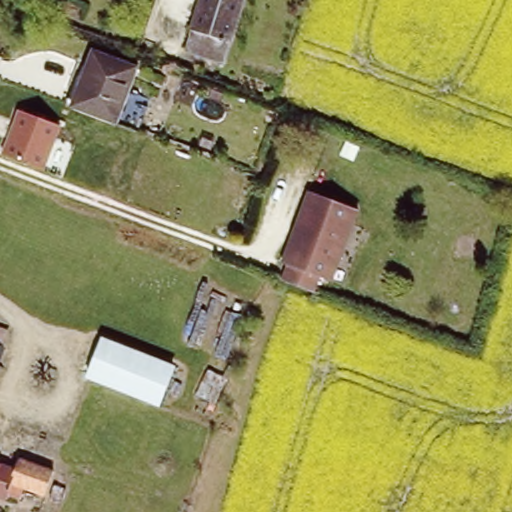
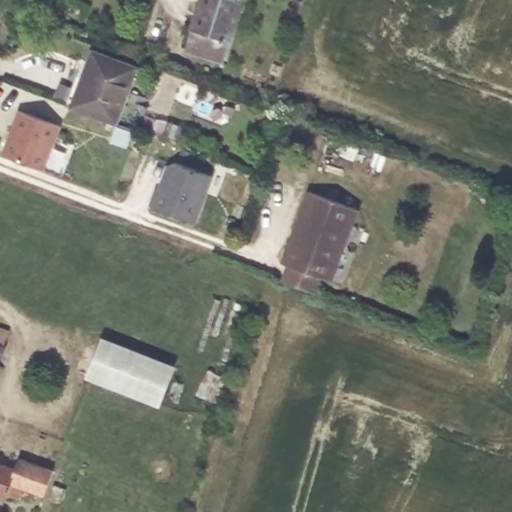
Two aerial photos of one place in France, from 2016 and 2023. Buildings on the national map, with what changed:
unchanged [(223,53),(185,42),(196,0),(249,0),(233,56),(223,53)]
unchanged [(120,118),(77,103),(88,73),(83,72),(93,42),(140,59),(127,97),(150,105),(142,126),(120,118)]
unchanged [(63,121),(47,168),(2,153),(17,104),(63,121)]
new [(156,188),(158,189),(167,164),(175,160),(215,175),(197,223),(150,204),(156,188)]
unchanged [(331,277),(320,274),(315,292),(287,282),(292,266),(282,261),(305,190),(358,207),(362,211),(358,225),(350,222),(343,244),(349,246),(345,260),(338,280),(331,277)]
unchanged [(7,332),(1,348),(0,350),(0,330),(7,332)]
unchanged [(175,365),(162,402),(92,375),(106,339),(175,365)]
unchanged [(52,469),(42,494),(22,487),(17,501),(4,496),(2,501),(0,500),(0,461),(3,450),(17,456),(52,469)]

